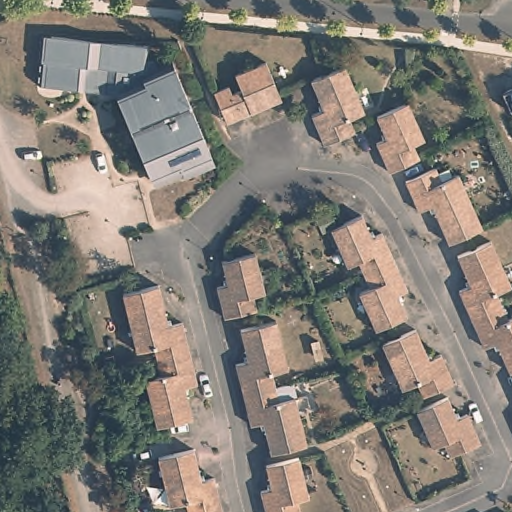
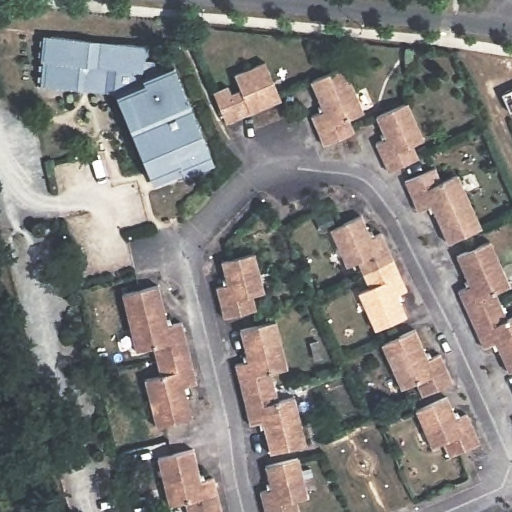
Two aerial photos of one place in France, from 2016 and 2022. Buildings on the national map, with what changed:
unchanged [(179,168),(177,164),(148,175),(115,94),(80,89),(57,88),(37,85),(40,61),(38,61),(41,36),(62,38),(100,44),(136,45),(151,47),(149,61),(152,62),(155,69),(171,62),(209,155),(179,168)]
unchanged [(246,117),(231,123),(218,93),(234,86),(237,95),(246,91),(239,75),(270,62),(286,100),(255,113),(253,114),(246,117)]
unchanged [(326,105),(316,81),(349,67),(368,112),(353,119),(357,130),(359,133),(329,145),(317,116),(324,112),(322,107),(326,105)]
unchanged [(503,92),(512,89),(512,112),(510,112),(502,95),(504,94),(503,92)]
unchanged [(423,140),(413,145),(419,159),(389,172),(376,142),(381,140),(379,135),(383,133),(377,119),(376,116),(407,103),(423,140)]
unchanged [(432,208),(423,211),(416,195),(410,181),(440,168),(446,181),(462,175),(486,229),(470,236),(453,244),(438,211),(434,213),(432,208)]
unchanged [(352,265),(336,229),(347,224),(366,215),(373,232),(378,230),(380,235),(386,232),(399,261),(368,275),(362,261),(352,265)]
unchanged [(462,256),(495,241),(512,280),(512,287),(500,292),(506,306),(476,320),(463,291),(470,287),(467,282),(472,280),(462,256)]
unchanged [(257,297),(261,311),(229,320),(221,288),(227,287),(226,281),(231,280),(226,262),(233,261),(258,255),(268,294),(257,297)]
unchanged [(403,300),(411,316),(397,323),(381,330),(364,293),(375,289),(368,275),(399,261),(412,290),(406,292),(408,298),(403,300)]
unchanged [(141,353),(127,295),(145,291),(162,286),(171,321),(176,320),(177,325),(186,323),(193,353),(194,353),(194,355),(162,363),(159,349),(141,353)]
unchanged [(488,348),(476,320),(506,306),(512,320),(512,368),(503,348),(498,350),(496,345),(488,348)]
unchanged [(252,357),(245,331),(264,326),(280,322),(292,370),(275,375),(278,388),(247,396),(247,395),(240,366),(248,364),(247,358),(252,357)]
unchanged [(435,352),(437,357),(445,353),(458,383),(428,396),(422,382),(407,390),(387,344),(420,329),(431,354),(435,352)]
unchanged [(195,356),(194,356),(201,385),(194,387),(195,392),(190,394),(197,420),(170,426),(162,428),(150,380),(166,377),(162,363),(194,355),(195,356)]
unchanged [(263,425),(255,427),(248,397),(247,397),(247,396),(278,388),(282,402),(299,398),(311,446),(276,455),(269,429),(264,430),(263,425)]
unchanged [(463,411),(466,416),(472,414),(485,443),(455,456),(448,443),(438,447),(421,410),(452,397),(459,413),(463,411)]
unchanged [(162,460),(177,456),(197,451),(204,476),(209,475),(211,481),(217,479),(225,508),(226,508),(226,510),(216,512),(192,512),(190,503),(175,507),(162,460)]
unchanged [(302,500),(304,512),(270,512),(265,493),(271,491),(270,486),(275,485),(271,467),(303,459),(312,498),(302,500)]
unchanged [(226,511),(226,512),(216,512),(226,510),(226,511)]

